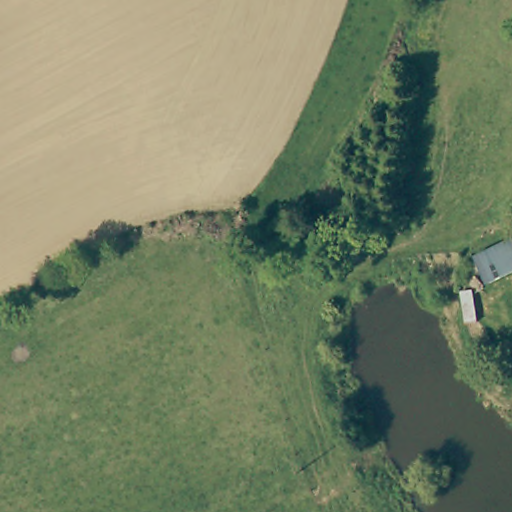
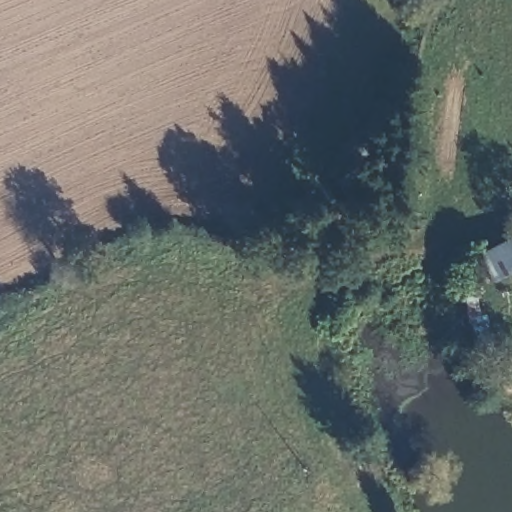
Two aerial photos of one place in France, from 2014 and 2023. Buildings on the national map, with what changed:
unchanged [(490,281),(476,255),(512,237),(512,270),(490,281)]
unchanged [(467,322),(463,290),(473,288),(479,320),(467,322)]

